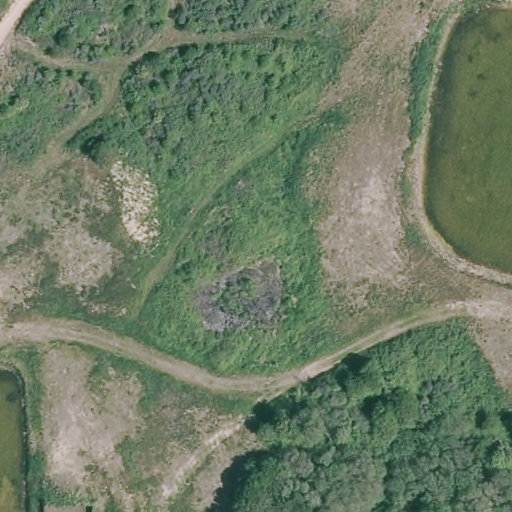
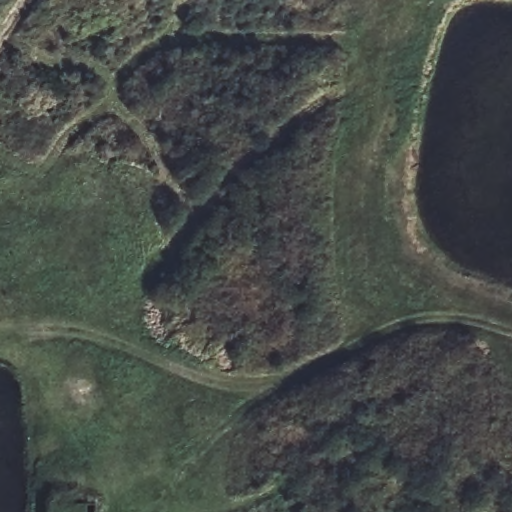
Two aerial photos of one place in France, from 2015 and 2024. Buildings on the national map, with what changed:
unchanged [(84,505),(85,512),(46,512),(47,504),(84,505)]

